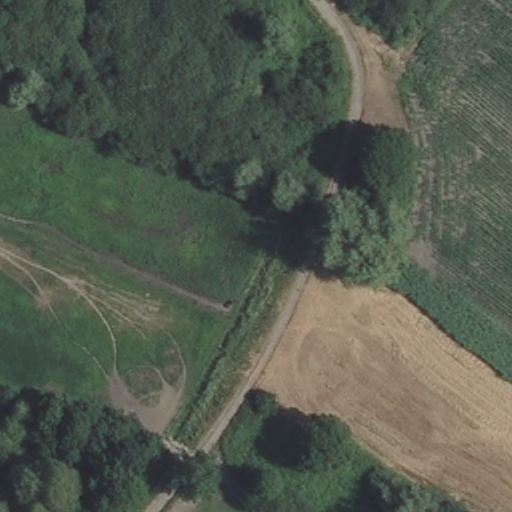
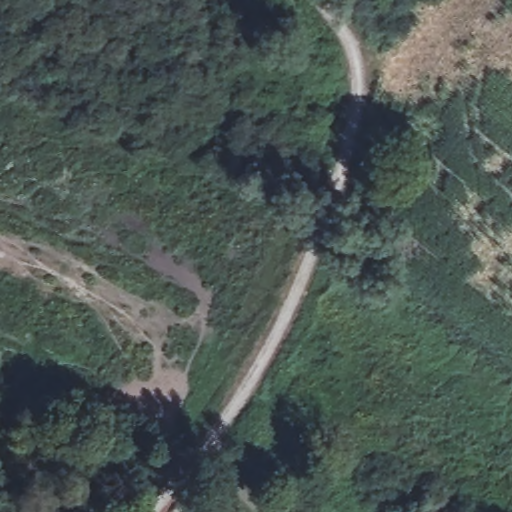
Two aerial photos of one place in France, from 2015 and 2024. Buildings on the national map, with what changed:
[]

